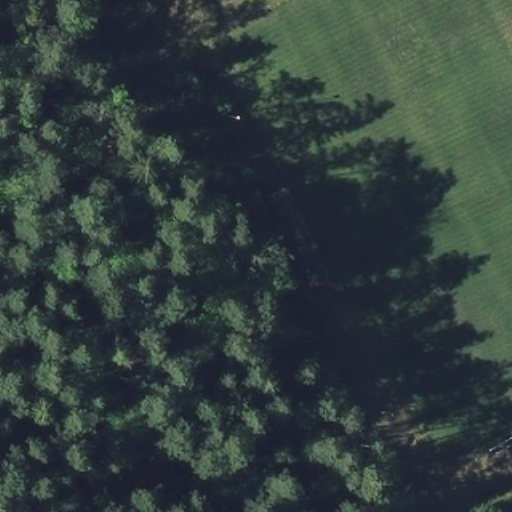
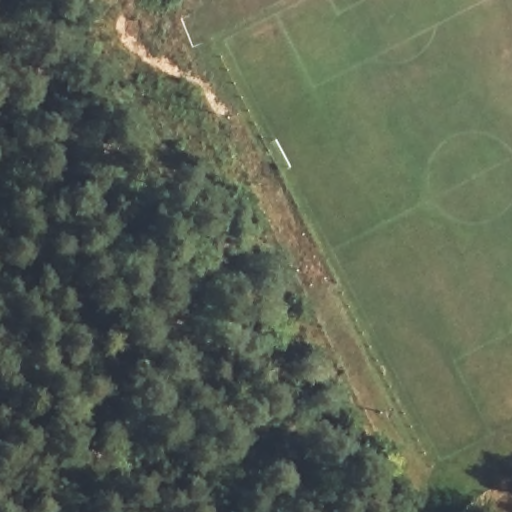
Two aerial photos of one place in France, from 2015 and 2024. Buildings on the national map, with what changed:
unchanged [(335,277),(315,286),(272,199),(291,188),(335,277)]

